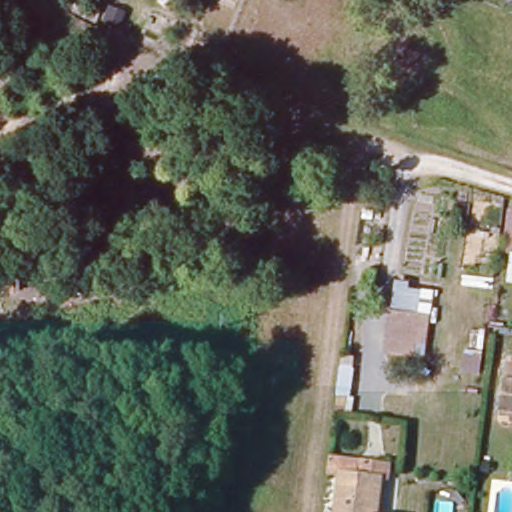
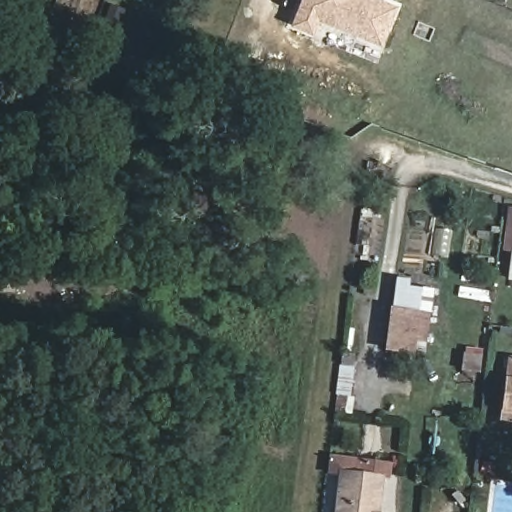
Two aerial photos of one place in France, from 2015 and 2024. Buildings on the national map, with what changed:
new [(396,5),(382,44),(318,20),(314,32),(290,25),(300,0),(384,0),(396,5)]
unchanged [(509,252),(501,252),(508,213),(512,213),(512,253),(509,252)]
unchanged [(512,255),(512,283),(499,281),(502,254),(512,255)]
unchanged [(422,358),(382,353),(391,287),(432,291),(422,358)]
unchanged [(354,358),(349,415),(334,412),(340,356),(354,358)]
unchanged [(497,422),(508,360),(512,361),(512,424),(497,422)]
unchanged [(335,472),(335,477),(324,476),(328,453),(392,460),(391,478),(346,473),(335,472)]
unchanged [(389,512),(342,512),(346,473),(391,478),(389,512)]

